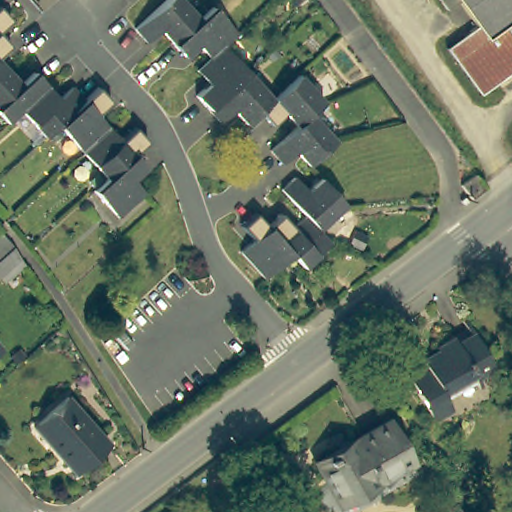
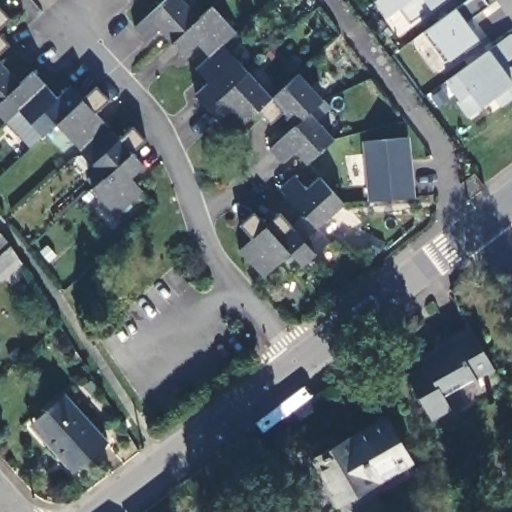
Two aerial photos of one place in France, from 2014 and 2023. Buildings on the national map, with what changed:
unchanged [(146,18),(167,0),(178,0),(197,20),(170,45),(158,31),(144,44),(133,31),(146,18)]
new [(379,0),(444,0),(432,9),(410,24),(399,10),(385,19),(375,3),(379,0)]
new [(488,6),(467,23),(479,38),(480,42),(466,52),(464,49),(450,60),(445,62),(435,44),(425,31),(428,28),(456,8),(469,0),(483,0),(488,6)]
demolished [(474,95),(444,51),(475,29),(458,6),(447,14),(437,0),(512,0),(512,69),(474,95)]
unchanged [(197,20),(209,8),(233,35),(222,45),(207,59),(204,56),(195,46),(182,58),(170,45),(197,20)]
unchanged [(0,28),(0,13),(8,21),(0,28)]
new [(509,62),(512,67),(512,99),(502,106),(495,97),(481,106),(466,117),(454,101),(458,99),(445,81),(457,73),(490,50),(512,35),(512,60),(509,62)]
unchanged [(0,53),(0,40),(6,47),(0,53)]
unchanged [(222,45),(246,72),(206,109),(193,96),(206,83),(194,71),(207,59),(222,45)]
unchanged [(0,77),(0,64),(6,71),(0,77)]
unchanged [(9,73),(19,84),(31,73),(44,87),(18,111),(5,123),(0,118),(0,77),(6,71),(9,73)]
unchanged [(256,111),(243,122),(238,117),(231,110),(218,122),(206,109),(246,72),(270,98),(256,111)]
unchanged [(282,112),(268,124),(256,111),(270,98),(296,74),(321,101),(307,113),(295,125),(282,112)]
unchanged [(51,94),(55,100),(69,88),(81,102),(44,135),(41,137),(18,111),(44,87),(51,94)]
unchanged [(66,136),(55,145),(44,135),(81,102),(93,91),(96,89),(106,103),(95,115),(106,127),(80,151),(66,136)]
unchanged [(305,164),(293,150),(280,162),(271,153),(268,149),(270,147),(295,125),(307,113),(332,140),(305,164)]
unchanged [(110,131),(118,139),(131,129),(143,143),(134,152),(131,154),(105,178),(80,151),(106,127),(110,131)]
new [(415,197),(369,201),(363,141),(409,138),(415,197)]
unchanged [(91,190),(105,178),(131,154),(142,167),(129,180),(141,192),(115,217),(91,190)]
unchanged [(454,179),(462,174),(470,168),(472,172),(477,181),(478,183),(470,189),(465,193),(454,179)]
unchanged [(303,214),(279,188),(292,176),(303,189),(317,177),(334,196),(342,204),(316,228),(303,214)]
unchanged [(241,252),(239,249),(251,238),(240,225),(254,212),(265,224),(290,252),(263,276),(241,252)]
unchanged [(290,252),(265,224),(278,213),(291,226),(299,219),(303,214),(316,228),(329,242),(302,266),(294,257),(290,252)]
unchanged [(18,262),(0,278),(0,234),(8,247),(18,262)]
unchanged [(434,421),(408,375),(425,365),(416,349),(419,348),(427,362),(441,354),(436,345),(468,327),(463,318),(466,317),(496,370),(490,374),(487,369),(476,375),(482,385),(479,386),(475,380),(446,396),(453,409),(451,411),(447,407),(436,413),(439,418),(434,421)]
unchanged [(63,393),(103,441),(68,470),(53,452),(56,449),(32,418),(63,393)]
unchanged [(313,462),(360,432),(382,419),(407,460),(338,501),(327,484),(313,462)]

